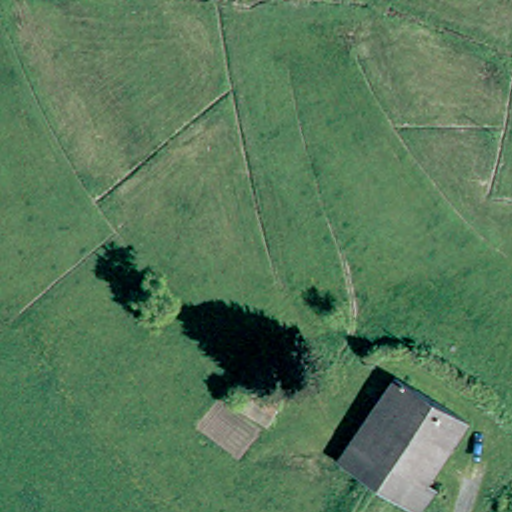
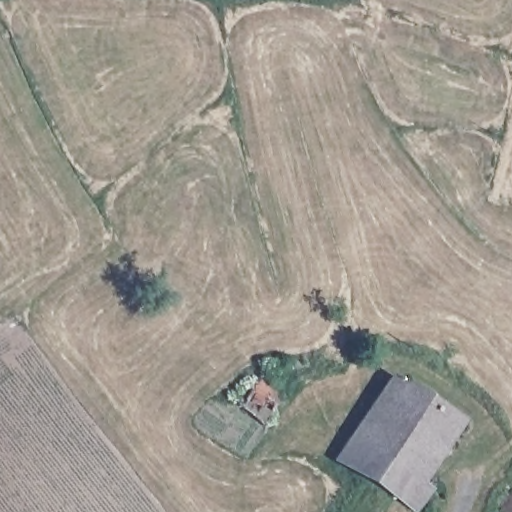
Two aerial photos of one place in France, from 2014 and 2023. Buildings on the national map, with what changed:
unchanged [(284,388),(266,416),(231,394),(231,392),(249,364),(284,388)]
unchanged [(422,477),(433,485),(417,508),(339,455),(396,371),(463,416),(422,477)]

